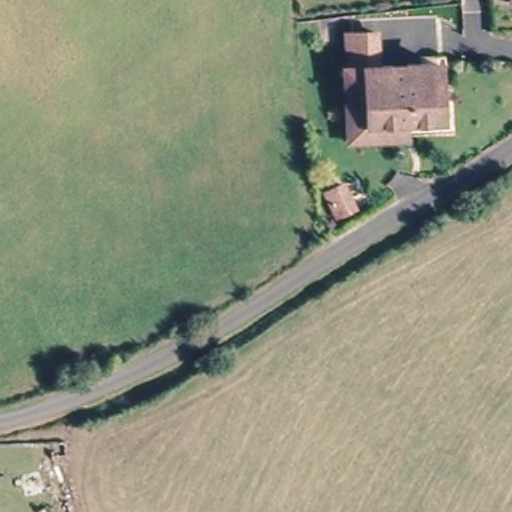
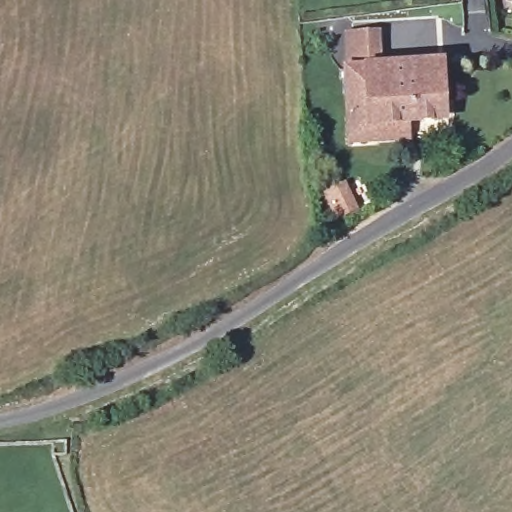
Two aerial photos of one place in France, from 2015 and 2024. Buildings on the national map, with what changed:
unchanged [(512,2),(504,0),(512,0),(512,2)]
unchanged [(380,138),(354,138),(351,64),(441,60),(446,117),(408,119),(409,137),(380,138)]
unchanged [(320,229),(310,206),(327,199),(337,222),(320,229)]

